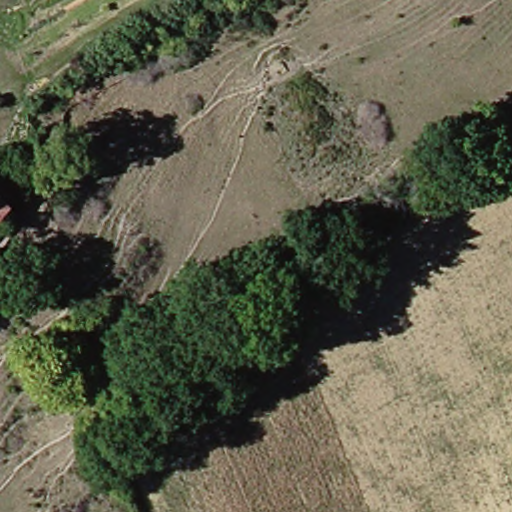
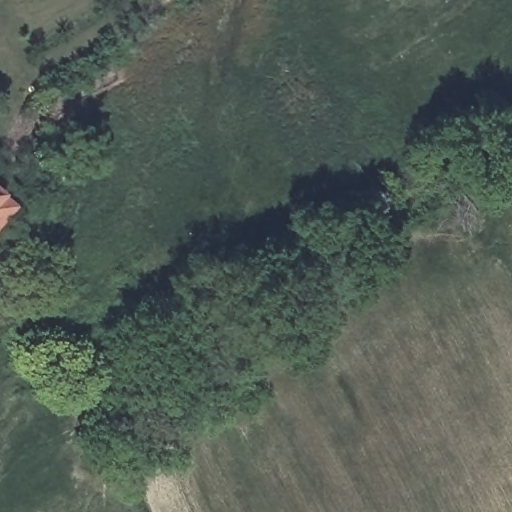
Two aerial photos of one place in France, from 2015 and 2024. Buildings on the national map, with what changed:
unchanged [(18,207),(0,227),(0,190),(18,207)]

